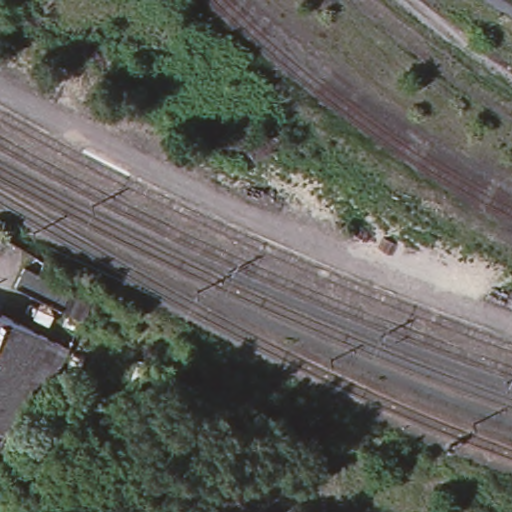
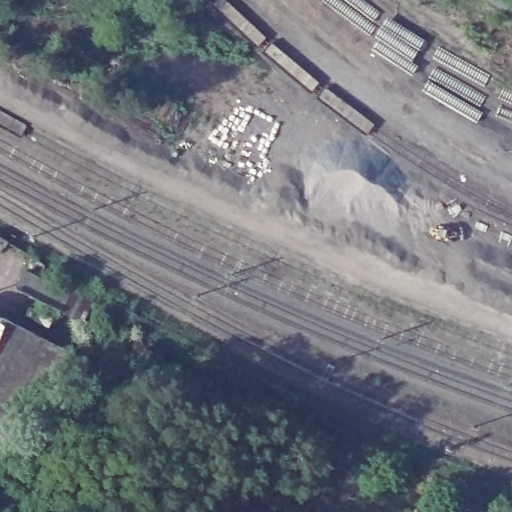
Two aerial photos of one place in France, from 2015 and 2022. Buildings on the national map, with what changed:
unchanged [(12,283),(20,266),(65,290),(67,284),(82,292),(89,295),(78,316),(70,312),(57,305),(12,283)]
unchanged [(58,345),(10,438),(0,433),(0,316),(58,345)]

